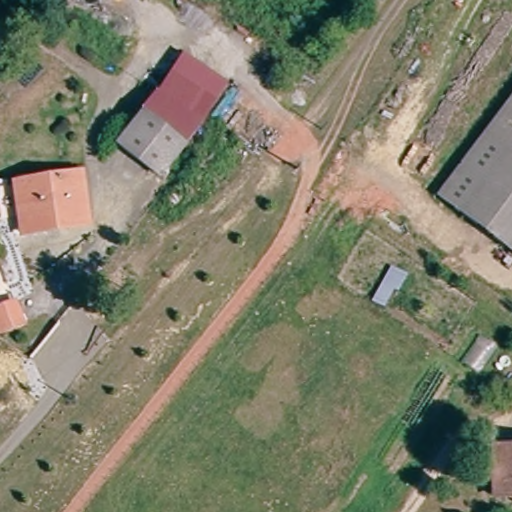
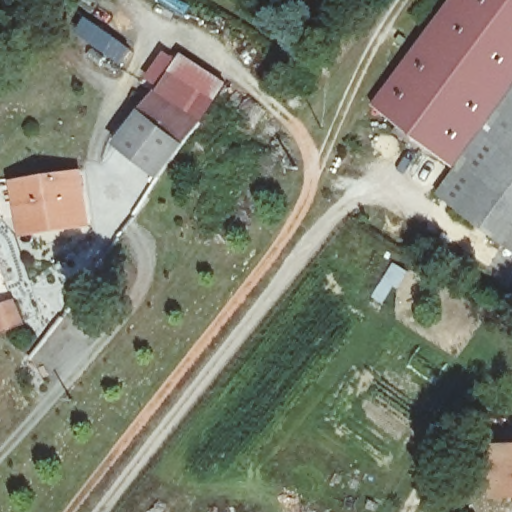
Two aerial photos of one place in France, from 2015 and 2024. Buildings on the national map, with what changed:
new [(485,135),(461,169),(373,105),(454,0),(512,0),(512,98),(485,135)]
unchanged [(205,122),(184,107),(162,92),(188,54),(231,84),(205,122)]
unchanged [(161,91),(162,92),(184,107),(205,122),(184,148),(142,114),(161,91)]
unchanged [(512,98),(512,155),(485,135),(512,98)]
unchanged [(159,179),(116,145),(142,114),(184,148),(159,179)]
unchanged [(512,155),(512,250),(442,197),(485,135),(512,155)]
unchanged [(21,225),(16,184),(80,175),(86,225),(65,228),(23,234),(21,225)]
unchanged [(12,329),(0,334),(0,310),(5,308),(12,329)]
unchanged [(490,487),(491,446),(512,446),(512,498),(490,498),(490,487)]

